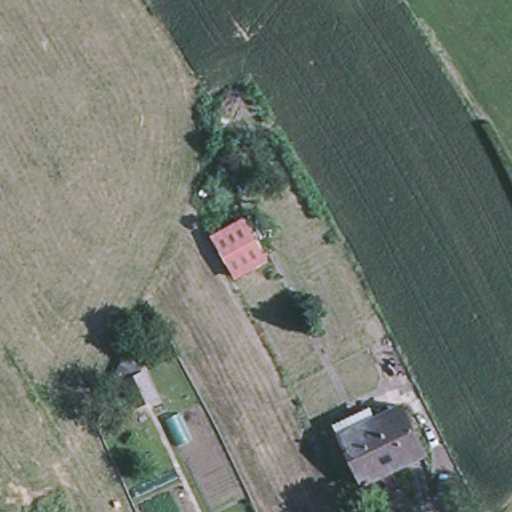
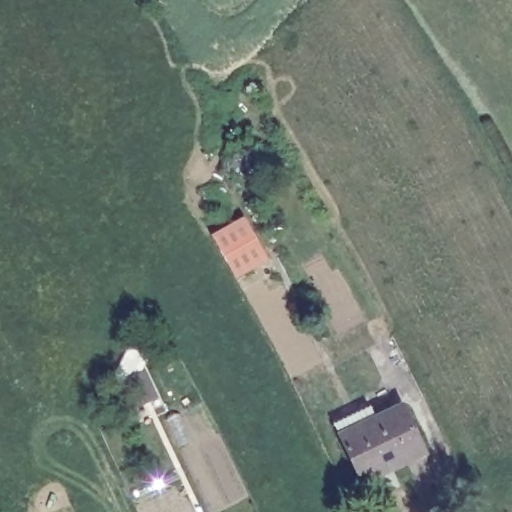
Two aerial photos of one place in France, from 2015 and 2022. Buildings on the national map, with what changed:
unchanged [(270,258),(237,280),(210,234),(245,215),(270,258)]
unchanged [(132,397),(119,376),(136,364),(150,385),(132,397)]
unchanged [(362,483),(339,436),(334,426),(361,413),(365,423),(404,405),(427,453),(391,470),(393,475),(365,488),(362,483)]

